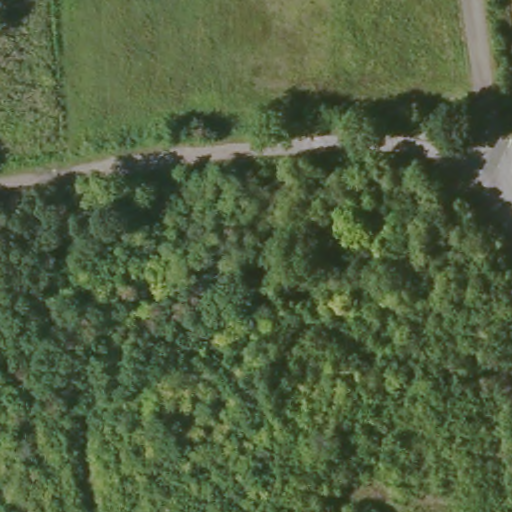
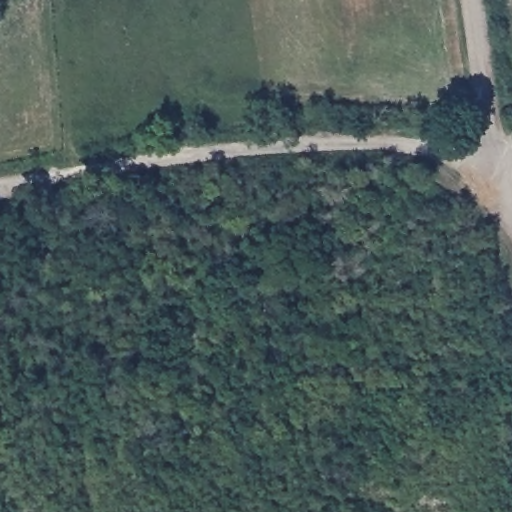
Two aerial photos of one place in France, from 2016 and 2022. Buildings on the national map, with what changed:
[]

